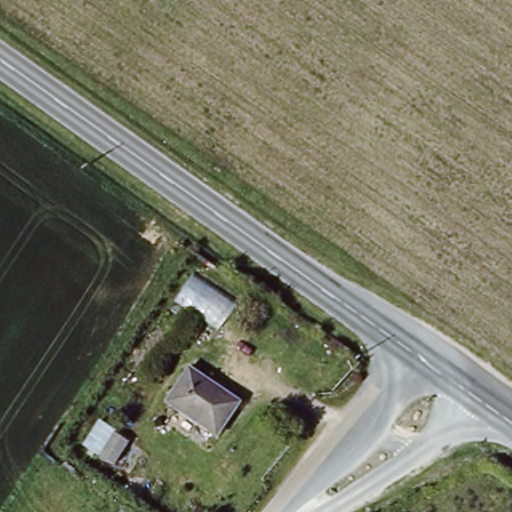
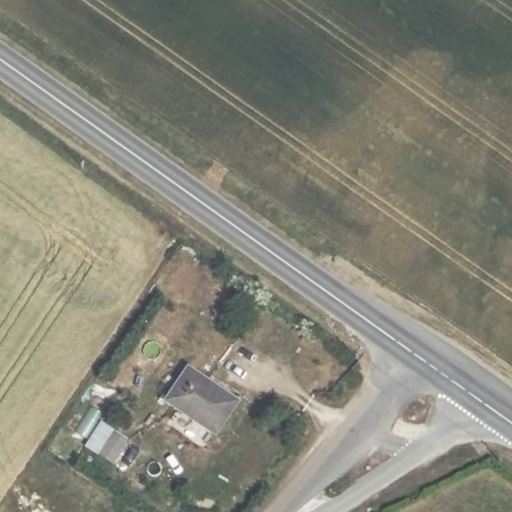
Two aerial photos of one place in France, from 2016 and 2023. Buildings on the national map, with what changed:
unchanged [(193,370),(242,403),(220,435),(171,403),(193,370)]
unchanged [(124,419),(137,428),(123,450),(110,442),(124,419)]

